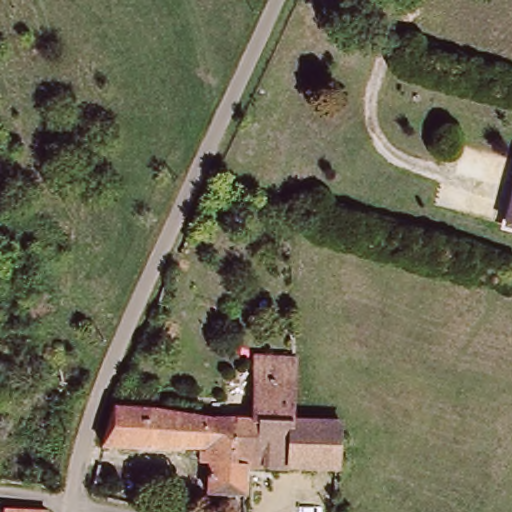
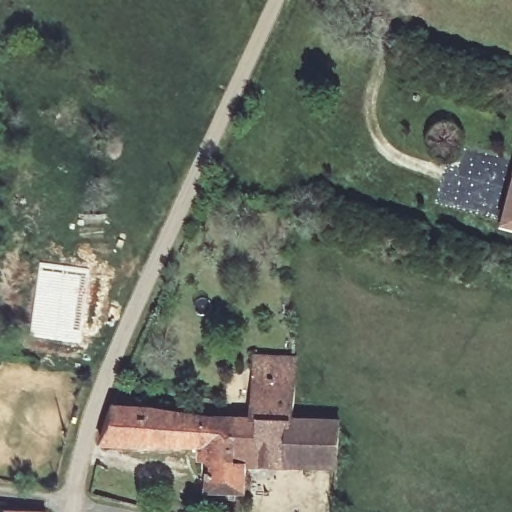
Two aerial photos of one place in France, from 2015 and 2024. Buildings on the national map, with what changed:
unchanged [(504,223),(512,186),(512,225),(504,223)]
new [(39,261),(90,268),(87,310),(81,345),(28,336),(39,261)]
unchanged [(267,362),(269,326),(299,327),(304,365),(300,365),(267,362)]
unchanged [(236,455),(239,414),(262,416),(267,362),(300,365),(297,421),(294,460),(250,455),(236,455)]
unchanged [(109,440),(116,402),(239,414),(236,455),(250,455),(248,492),(209,490),(205,445),(109,440)]
unchanged [(297,421),(346,425),(340,472),(326,471),(327,462),(294,460),(297,421)]
unchanged [(48,505),(48,512),(6,512),(6,506),(48,505)]

